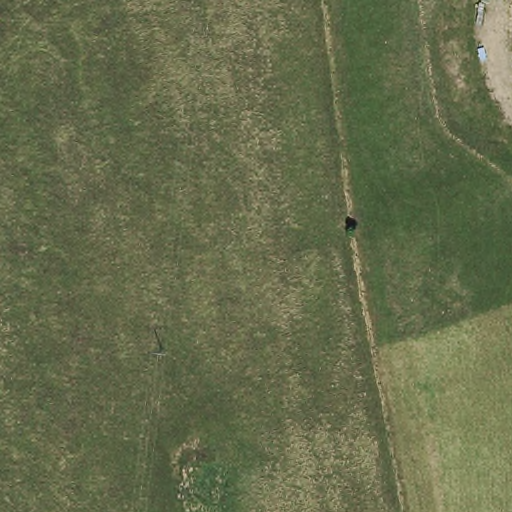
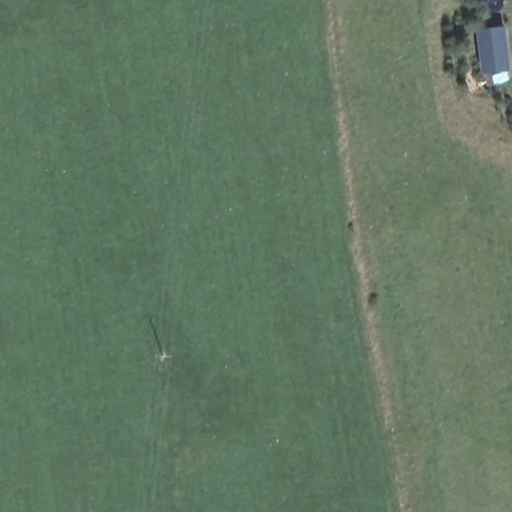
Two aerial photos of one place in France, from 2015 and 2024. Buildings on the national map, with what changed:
new [(510,72),(482,75),(477,31),(505,28),(510,72)]

